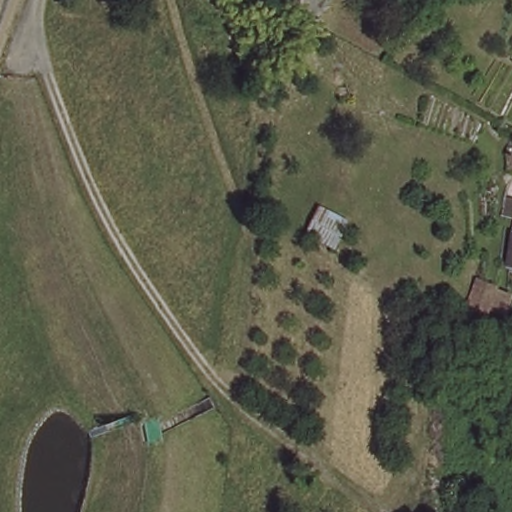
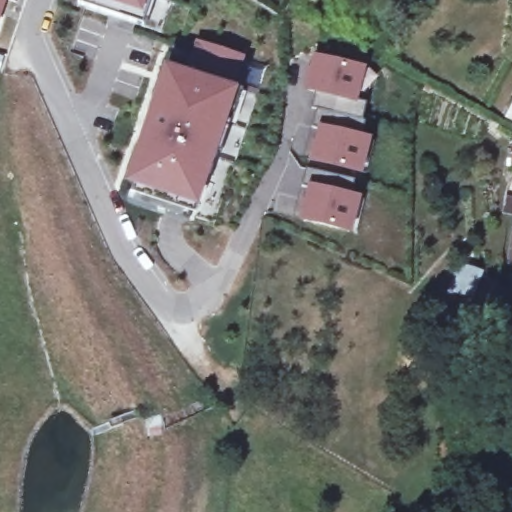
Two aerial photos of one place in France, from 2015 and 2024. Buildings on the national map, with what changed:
new [(0,30),(0,0),(10,0),(0,30)]
new [(142,27),(79,4),(80,0),(151,0),(142,27)]
new [(312,110),(316,94),(308,92),(316,60),(360,71),(352,101),(367,105),(363,123),(317,111),(312,110)]
new [(239,91),(201,211),(197,210),(196,218),(131,196),(134,189),(126,186),(167,68),(239,91)]
new [(366,124),(362,141),(365,142),(357,173),(314,162),(322,132),(312,129),(317,112),(366,124)]
new [(356,183),(352,200),(356,201),(347,232),(304,221),(312,191),(302,188),(307,170),(356,183)]
demolished [(357,219),(342,252),(302,233),(319,202),(357,219)]
unchanged [(512,258),(510,257),(512,230),(512,258)]
new [(455,269),(467,274),(467,271),(512,288),(512,303),(507,314),(447,290),(455,269)]

